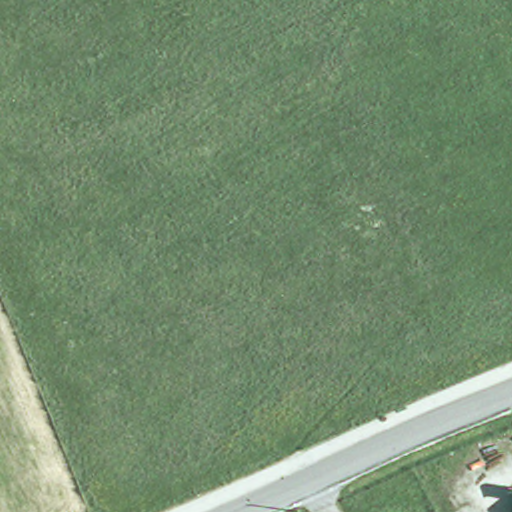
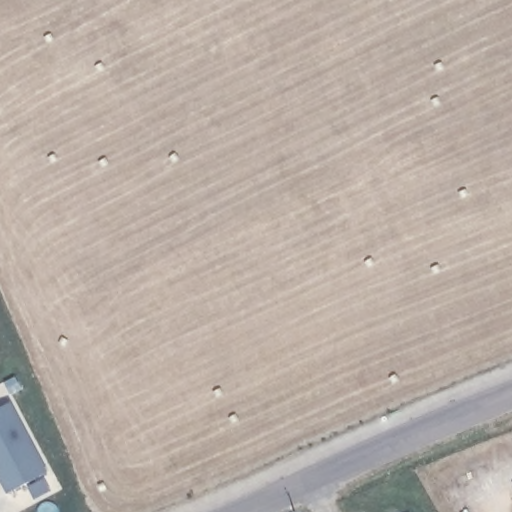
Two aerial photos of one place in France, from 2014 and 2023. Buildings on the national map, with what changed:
new [(48,471),(6,494),(0,482),(0,407),(12,401),(48,471)]

